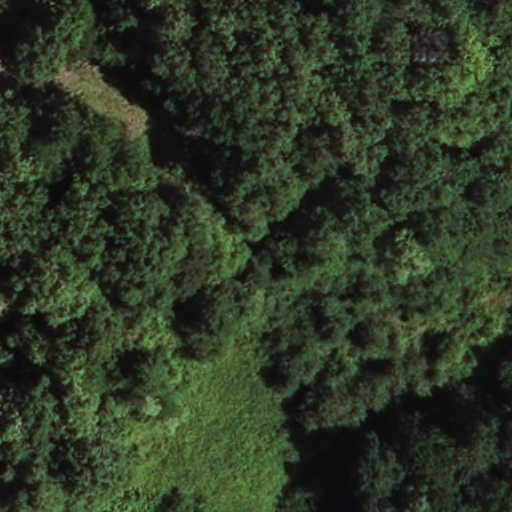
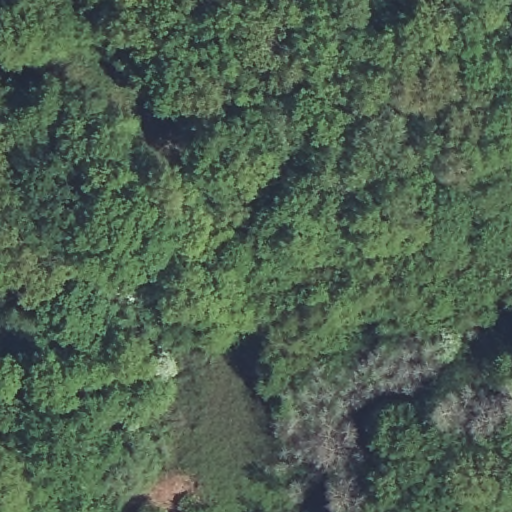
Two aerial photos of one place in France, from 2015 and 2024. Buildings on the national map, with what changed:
unchanged [(99,233),(141,260),(120,288),(80,259),(99,233)]

